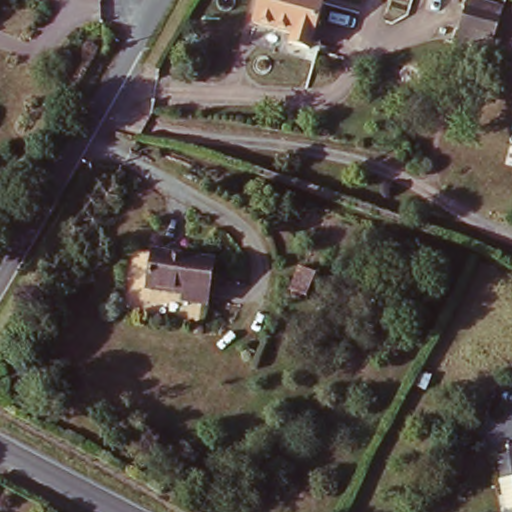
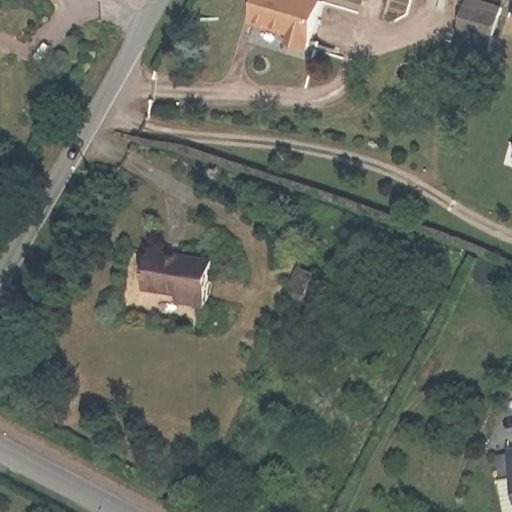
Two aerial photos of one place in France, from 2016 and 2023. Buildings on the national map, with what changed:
unchanged [(306,0),(320,4),(306,52),(287,47),(290,38),(251,26),(258,0),(306,0)]
unchanged [(465,0),(476,0),(502,8),(487,54),(452,43),(465,0)]
unchanged [(207,303),(182,298),(184,288),(149,281),(157,247),(216,259),(207,303)]
unchanged [(500,481),(496,455),(512,452),(512,479),(500,481)]

